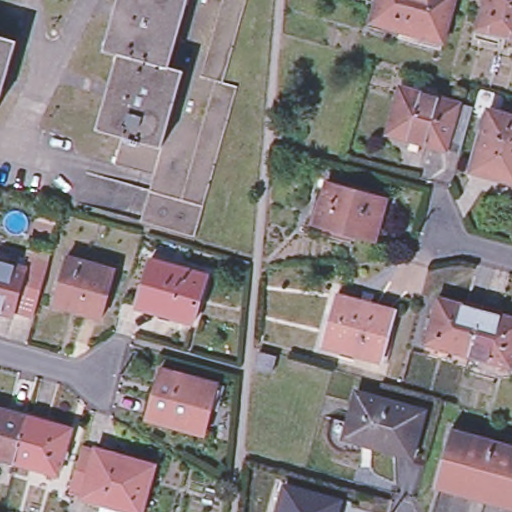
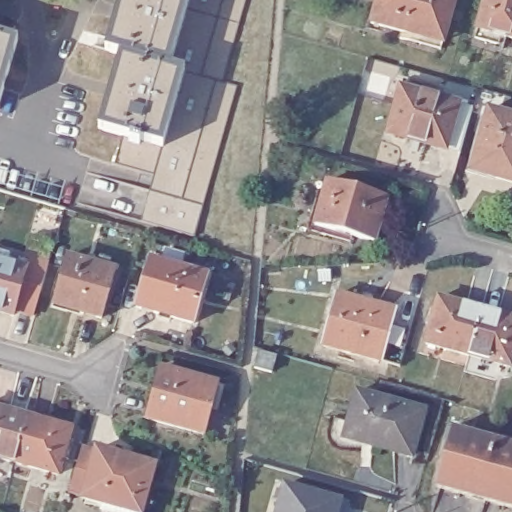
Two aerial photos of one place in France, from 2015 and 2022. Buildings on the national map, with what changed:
unchanged [(102,128),(123,54),(108,49),(122,0),(248,0),(224,82),(240,87),(196,237),(141,221),(155,175),(140,171),(117,164),(125,135),(102,128)]
unchanged [(453,0),(441,42),(371,22),(377,0),(453,0)]
unchanged [(478,26),(485,0),(512,0),(512,36),(502,33),(499,44),(475,36),(478,26)]
unchanged [(0,93),(0,42),(15,46),(0,93)]
unchanged [(451,158),(437,153),(380,137),(392,93),(449,109),(464,113),(451,158)]
unchanged [(485,114),(512,122),(512,185),(468,173),(485,114)]
unchanged [(349,193),(348,198),(382,207),(370,247),(313,231),(325,187),(349,193)]
unchanged [(0,317),(0,257),(9,259),(9,258),(10,258),(7,270),(23,275),(25,275),(13,315),(12,321),(0,317)]
unchanged [(65,258),(112,272),(99,319),(78,313),(79,310),(52,303),(65,258)]
unchanged [(147,259),(205,275),(191,323),(134,307),(147,259)]
unchanged [(33,322),(13,315),(25,275),(23,275),(26,264),(47,270),(33,322)]
unchanged [(469,356),(425,343),(439,298),(482,311),(469,356)]
unchanged [(391,317),(376,367),(318,351),(333,301),(391,317)]
unchanged [(482,311),(512,320),(512,361),(510,368),(469,356),(482,311)]
unchanged [(270,373),(254,368),(259,353),(275,358),(270,373)]
unchanged [(159,368),(216,384),(203,432),(145,417),(159,368)]
unchanged [(373,441),(346,433),(357,394),(423,413),(410,458),(371,447),(373,441)]
unchanged [(0,458),(0,410),(27,417),(15,462),(0,458)]
unchanged [(27,417),(70,429),(57,474),(15,462),(27,417)]
unchanged [(477,503),(434,490),(450,434),(494,446),(477,503)]
unchanged [(477,503),(494,446),(512,452),(512,512),(508,512),(477,503)]
unchanged [(112,508),(104,506),(105,502),(91,498),(77,494),(90,448),(105,452),(162,468),(150,512),(111,512),(112,508)]
unchanged [(338,507),(337,512),(276,512),(282,491),(338,507)]

